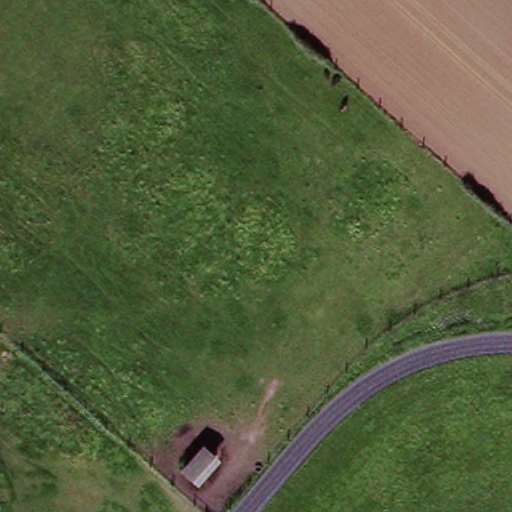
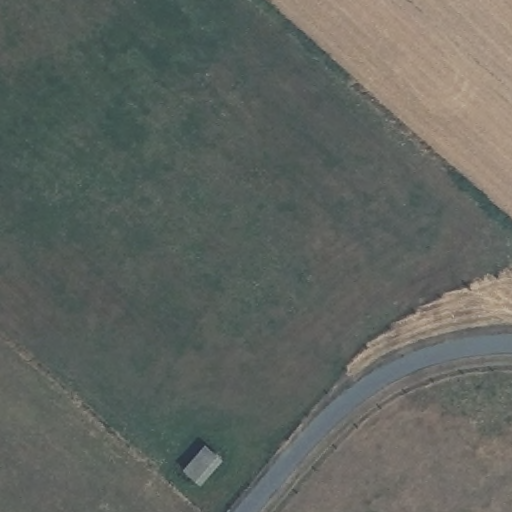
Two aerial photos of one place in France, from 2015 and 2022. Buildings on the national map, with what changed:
unchanged [(222,461),(200,486),(182,469),(205,445),(222,461)]

